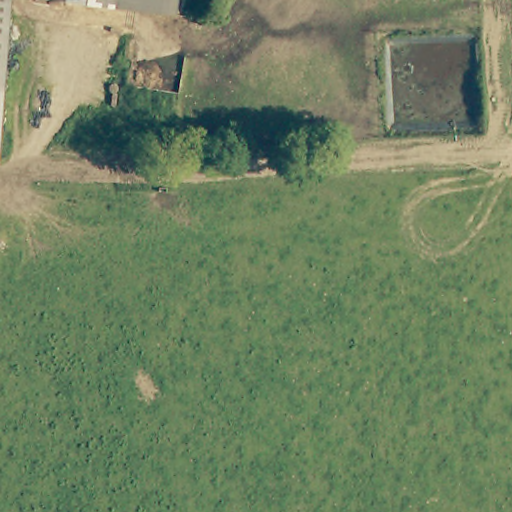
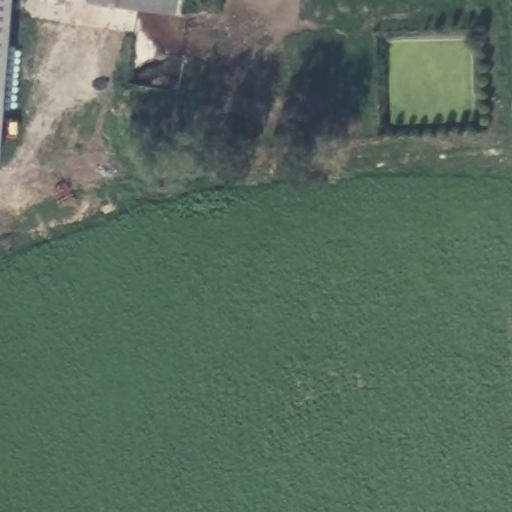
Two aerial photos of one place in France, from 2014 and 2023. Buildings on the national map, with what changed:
unchanged [(0,54),(0,0),(5,0),(0,54)]
unchanged [(156,14),(80,0),(158,0),(156,14)]
unchanged [(0,87),(4,87),(0,140),(0,87)]

